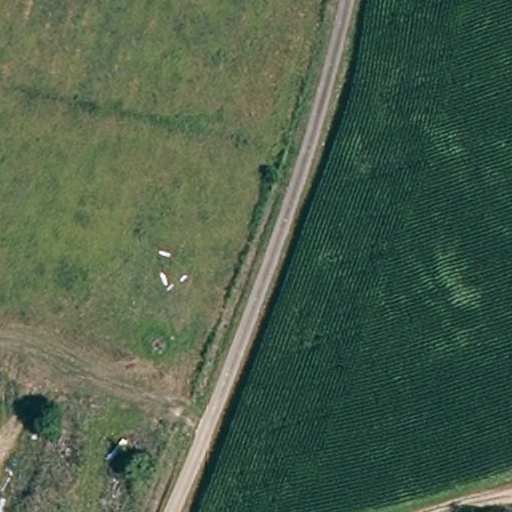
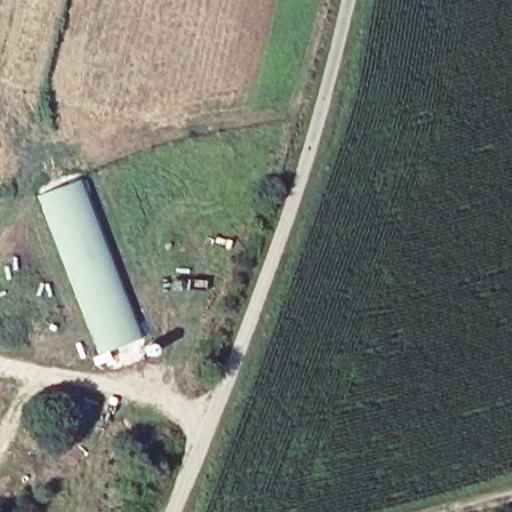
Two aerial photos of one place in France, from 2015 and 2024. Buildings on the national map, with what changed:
new [(37,195),(79,179),(141,337),(99,353),(37,195)]

